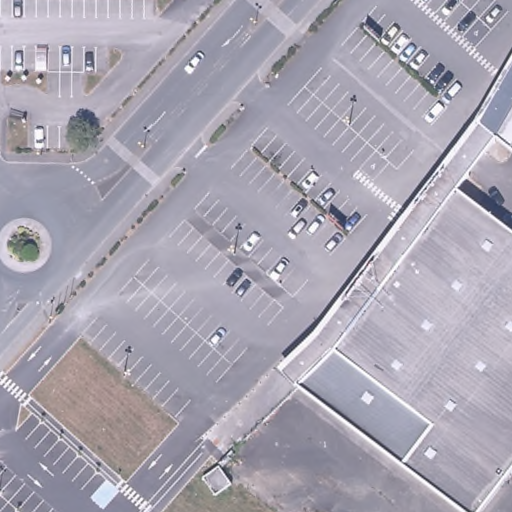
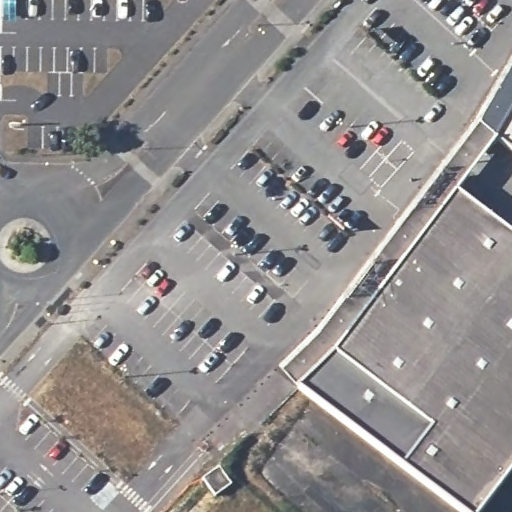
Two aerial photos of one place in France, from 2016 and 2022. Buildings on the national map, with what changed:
unchanged [(512,121),(500,141),(478,123),(512,66),(512,121)]
unchanged [(512,151),(500,141),(512,121),(512,151)]
unchanged [(500,141),(460,192),(459,192),(336,353),(313,335),(478,123),(500,141)]
unchanged [(460,192),(512,232),(512,473),(504,483),(433,429),(336,353),(459,192),(460,192)]
unchanged [(279,370),(313,336),(313,335),(336,353),(299,390),(279,370)]
unchanged [(483,512),(459,512),(403,468),(299,390),(336,353),(433,429),(504,483),(483,512)]
unchanged [(225,472),(232,484),(215,496),(204,477),(220,467),(225,472)]

